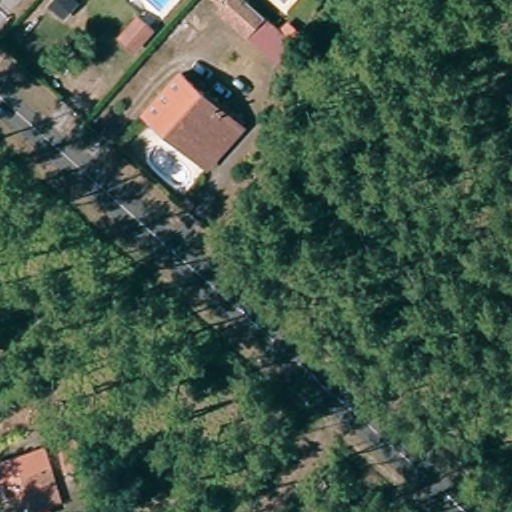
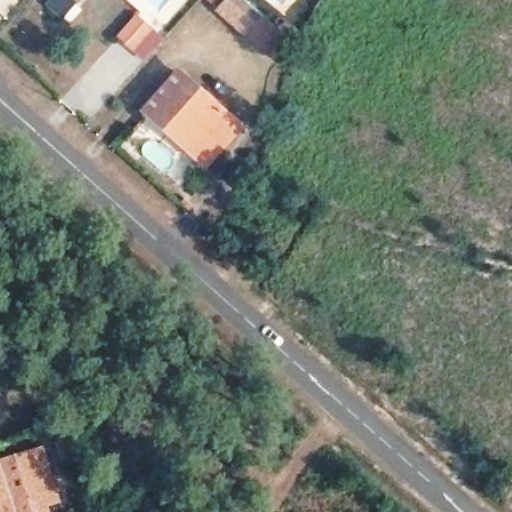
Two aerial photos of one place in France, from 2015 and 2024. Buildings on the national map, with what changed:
unchanged [(46,4),(50,0),(71,0),(74,2),(61,17),(46,4)]
unchanged [(218,7),(224,0),(249,0),(261,11),(245,31),(218,7)]
unchanged [(148,29),(129,49),(116,37),(136,17),(148,29)]
unchanged [(138,112),(174,73),(222,117),(195,146),(171,124),(162,133),(138,112)]
unchanged [(171,124),(195,146),(222,117),(235,128),(201,168),(162,133),(171,124)]
unchanged [(0,501),(0,477),(46,464),(51,478),(58,502),(22,512),(3,512),(0,501)]

